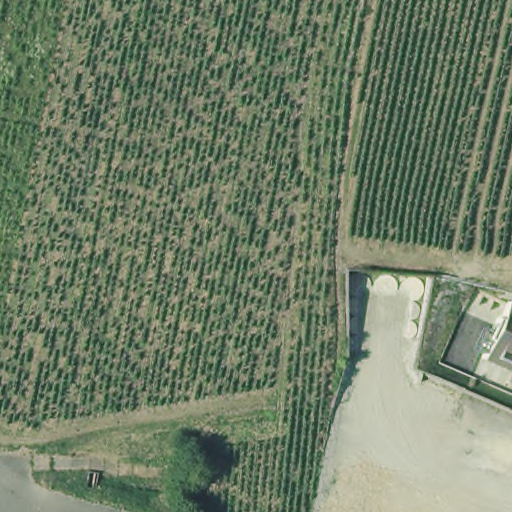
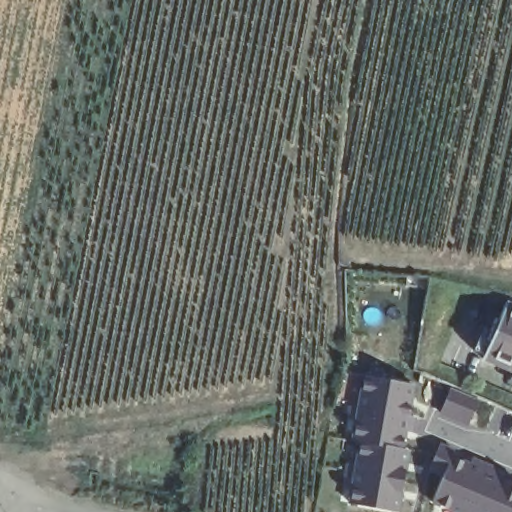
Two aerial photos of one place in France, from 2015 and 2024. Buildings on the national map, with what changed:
unchanged [(482,369),(509,294),(512,295),(512,381),(482,369)]
new [(360,445),(352,444),(364,375),(412,384),(407,417),(412,419),(410,434),(403,432),(400,450),(407,452),(398,512),(383,512),(350,506),(360,445)]
new [(451,458),(468,464),(470,459),(500,471),(497,478),(512,484),(512,512),(460,512),(434,501),(451,458)]

